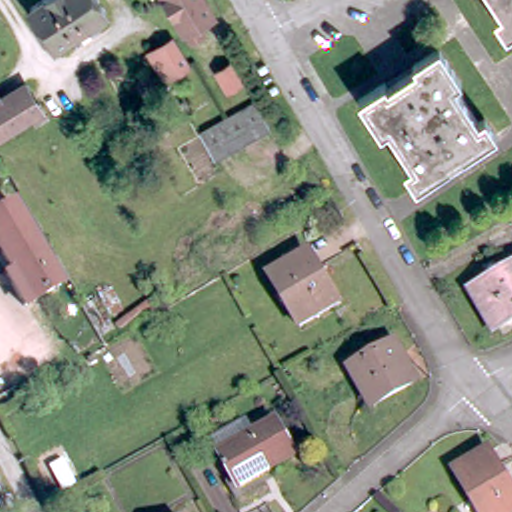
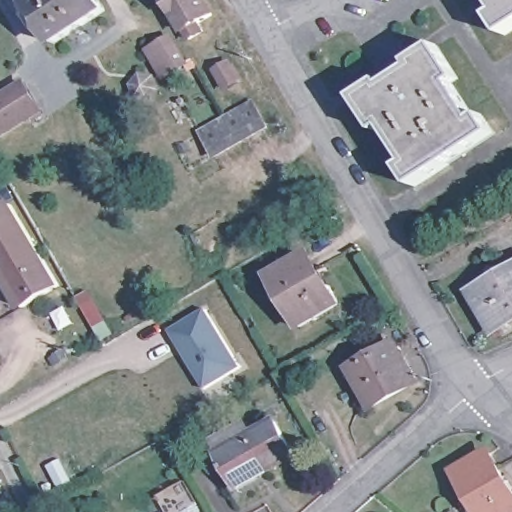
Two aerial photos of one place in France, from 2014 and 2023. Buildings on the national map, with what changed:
unchanged [(61,46),(37,9),(51,0),(103,0),(112,14),(89,29),(93,34),(85,39),(80,34),(61,46)]
unchanged [(185,31),(167,0),(204,0),(212,15),(185,31)]
unchanged [(500,16),(505,11),(498,0),(512,0),(512,32),(512,33),(500,16)]
unchanged [(187,64),(173,72),(159,45),(172,38),(187,64)]
unchanged [(415,166),(394,129),(386,133),(365,102),(390,84),(397,91),(422,74),(417,66),(445,48),(464,78),(457,83),(482,118),(487,115),(500,135),(422,188),(410,170),(415,166)]
unchanged [(240,82),(225,90),(215,73),(230,64),(240,82)]
unchanged [(33,120),(29,115),(0,133),(0,97),(25,82),(44,113),(33,120)]
unchanged [(257,108),(271,132),(220,160),(205,136),(257,108)]
unchanged [(29,304),(23,307),(7,278),(13,274),(0,252),(0,213),(12,205),(60,285),(29,304)]
unchanged [(302,329),(272,280),(310,258),(330,292),(335,289),(342,304),(302,329)]
unchanged [(498,332),(479,297),(512,278),(512,324),(498,332)]
new [(207,311),(242,369),(207,390),(172,332),(207,311)]
unchanged [(395,345),(418,381),(379,404),(356,369),(395,345)]
unchanged [(280,426),(301,459),(249,488),(228,455),(280,426)]
unchanged [(457,471),(490,451),(512,486),(512,512),(483,512),(457,471)]
unchanged [(70,485),(57,494),(43,474),(55,464),(70,485)]

